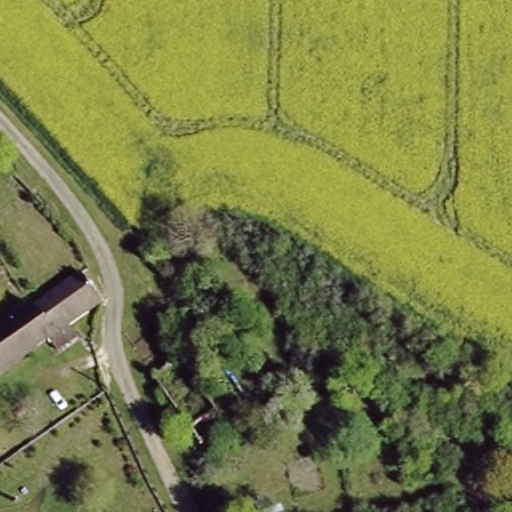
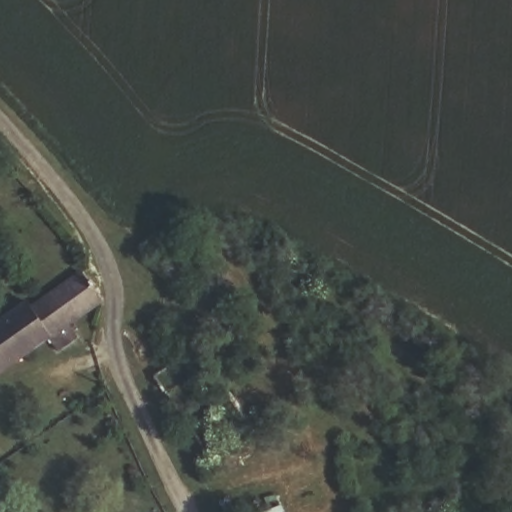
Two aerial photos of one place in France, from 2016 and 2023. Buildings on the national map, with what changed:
unchanged [(66,320),(75,334),(53,349),(47,339),(0,370),(0,318),(23,303),(28,309),(83,273),(96,301),(66,320)]
unchanged [(281,504),(284,512),(260,512),(281,504)]

